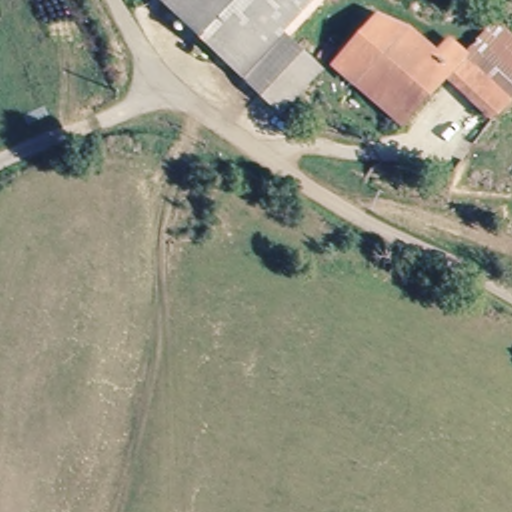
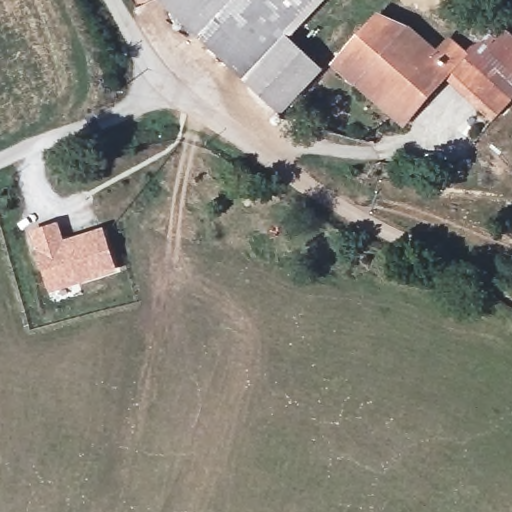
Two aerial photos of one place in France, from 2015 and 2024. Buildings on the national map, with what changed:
unchanged [(163,0),(314,0),(285,30),(244,75),(163,0)]
unchanged [(496,120),(448,79),(406,123),(333,69),(372,25),(393,27),(408,34),(437,59),(447,50),(462,65),(510,105),(496,120)]
unchanged [(462,65),(494,28),(512,42),(512,102),(510,105),(462,65)]
unchanged [(286,110),(244,75),(285,30),(323,66),(286,110)]
unchanged [(444,181),(455,186),(448,196),(439,191),(444,181)]
new [(49,292),(30,231),(60,222),(65,239),(104,226),(118,270),(49,292)]

